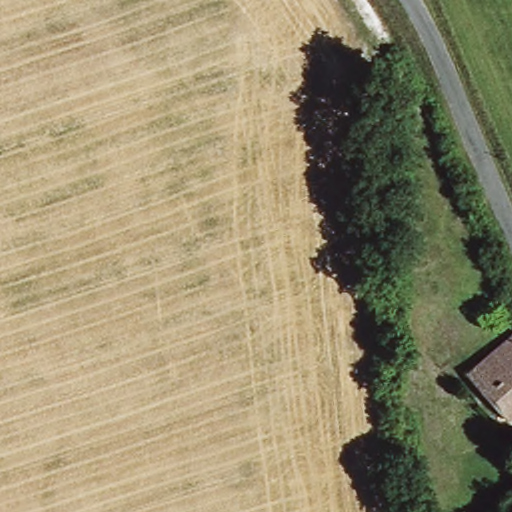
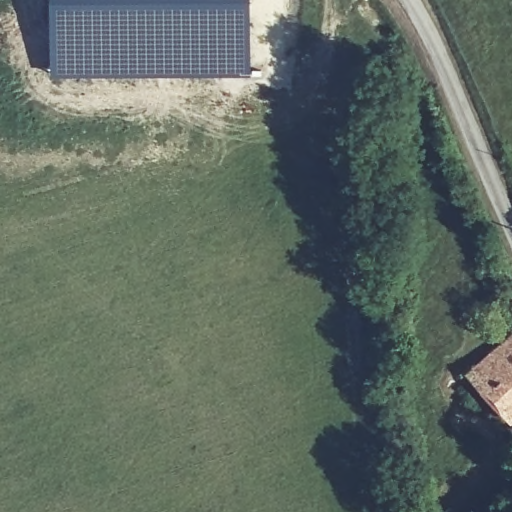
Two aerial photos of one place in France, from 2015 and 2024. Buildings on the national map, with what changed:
new [(51,0),(251,0),(251,75),(50,75),(51,0)]
unchanged [(500,414),(494,405),(470,370),(512,339),(512,406),(500,414)]

